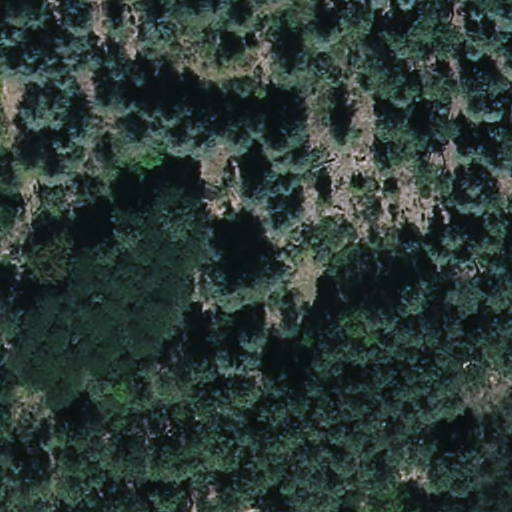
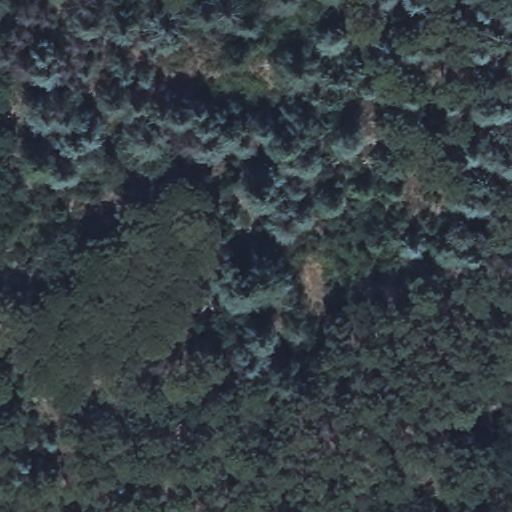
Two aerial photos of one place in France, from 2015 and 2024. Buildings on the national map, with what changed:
unchanged [(139,405),(124,396),(136,367),(153,372),(139,405)]

